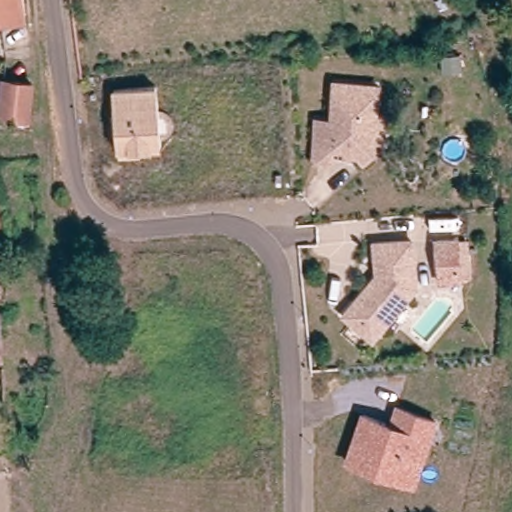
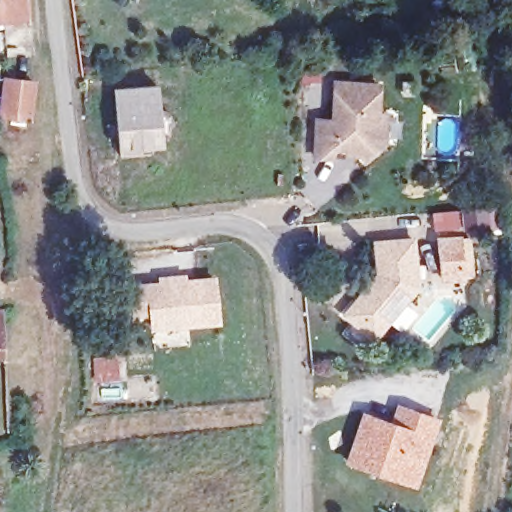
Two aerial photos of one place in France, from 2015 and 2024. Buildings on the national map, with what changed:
unchanged [(0,28),(0,0),(20,0),(20,27),(0,28)]
unchanged [(5,76),(27,79),(30,79),(28,108),(27,116),(2,114),(5,76)]
unchanged [(368,157),(358,146),(336,146),(335,156),(318,155),(320,118),(335,118),(337,80),(380,82),(379,110),(387,111),(386,139),(368,157)]
unchanged [(172,129),(161,131),(163,144),(120,149),(114,89),(155,84),(160,115),(170,114),(172,129)]
unchanged [(440,258),(437,233),(457,231),(466,230),(468,243),(470,270),(461,271),(442,273),(440,258)]
unchanged [(416,285),(380,343),(348,323),(371,287),(376,290),(385,277),(379,274),(375,242),(411,238),(416,285)]
new [(156,280),(156,275),(185,273),(186,277),(215,274),(220,325),(149,331),(147,321),(128,323),(125,284),(156,280)]
unchanged [(1,357),(0,356),(0,309),(4,309),(1,357)]
new [(118,355),(120,380),(94,383),(91,357),(118,355)]
unchanged [(370,468),(350,462),(365,414),(393,423),(398,406),(436,418),(424,457),(416,483),(370,468)]

